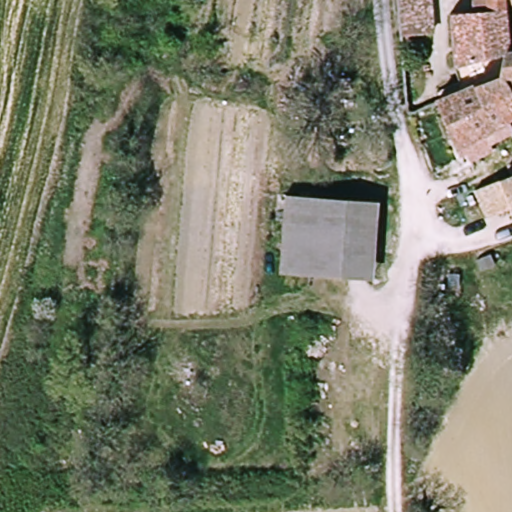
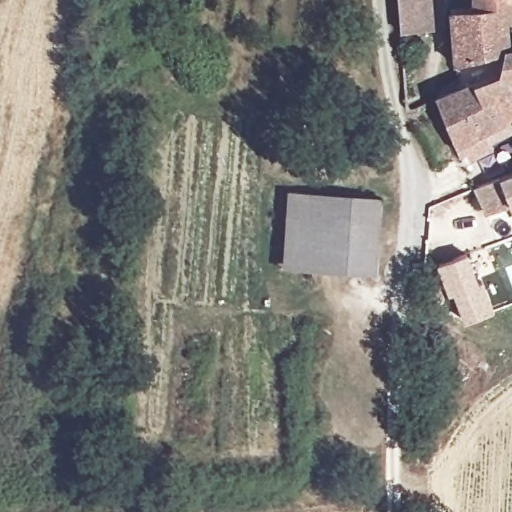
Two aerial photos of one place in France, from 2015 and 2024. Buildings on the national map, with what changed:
unchanged [(426,34),(395,34),(390,0),(423,0),(426,34)]
unchanged [(501,16),(500,36),(485,41),(447,58),(443,5),(466,3),(465,0),(500,0),(501,16)]
unchanged [(474,94),(463,77),(483,59),(485,41),(500,36),(512,38),(512,121),(507,122),(485,88),(474,94)]
unchanged [(463,77),(474,94),(485,88),(507,122),(449,145),(431,103),(463,77)]
unchanged [(482,216),(471,191),(512,172),(512,221),(502,208),(482,216)]
unchanged [(276,270),(282,193),(374,202),(366,279),(276,270)]
new [(493,311),(464,322),(454,294),(449,295),(438,265),(471,253),(493,311)]

